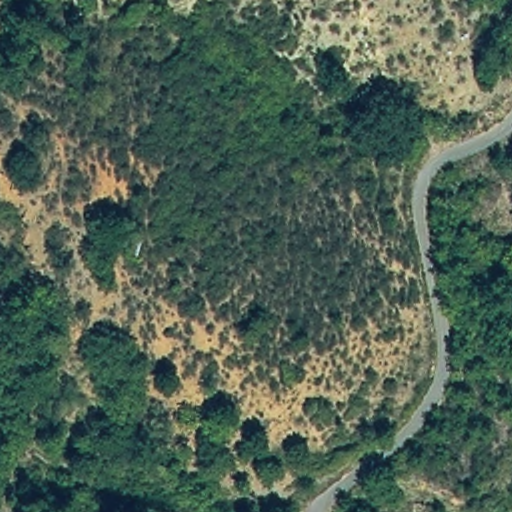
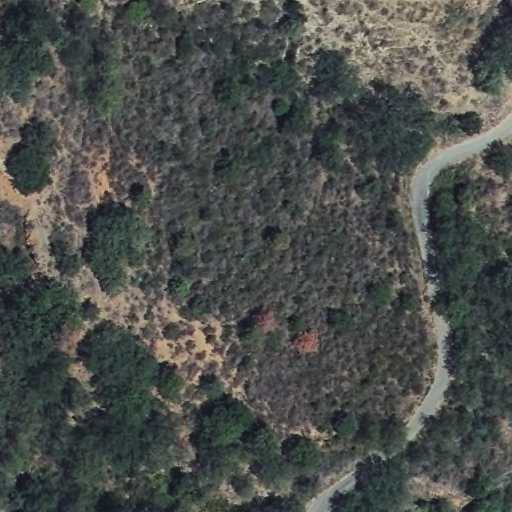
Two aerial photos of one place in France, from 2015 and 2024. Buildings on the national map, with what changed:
[]

